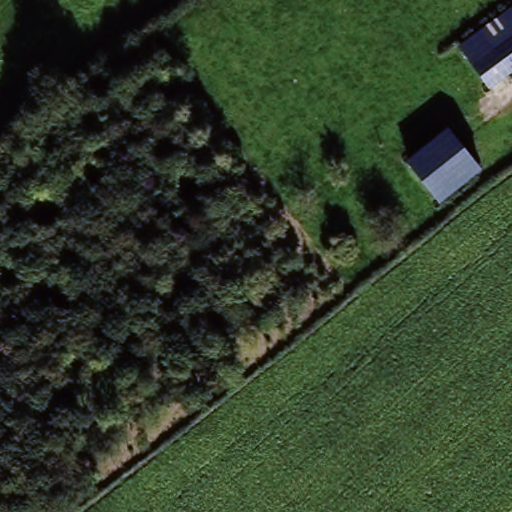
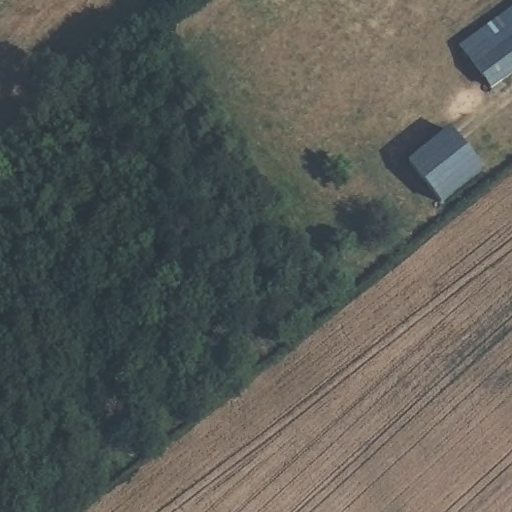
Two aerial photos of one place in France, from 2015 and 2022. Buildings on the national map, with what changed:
unchanged [(474,70),(459,48),(512,8),(512,73),(489,90),(474,70)]
unchanged [(479,175),(438,206),(409,166),(450,136),(479,175)]

